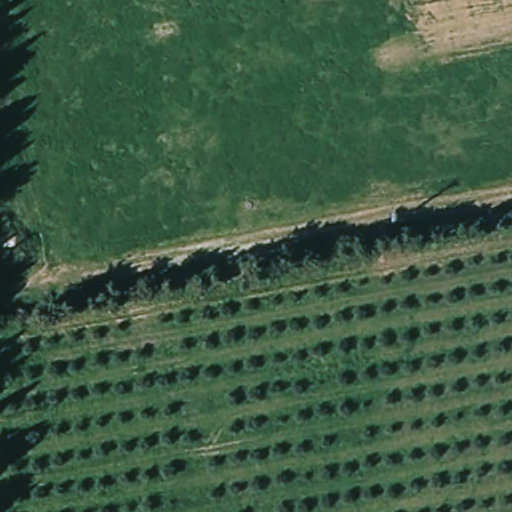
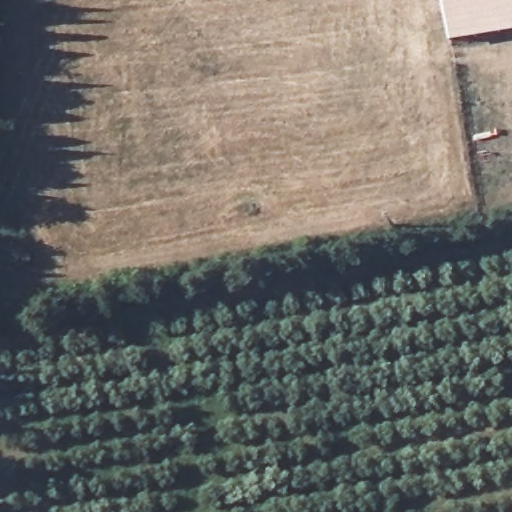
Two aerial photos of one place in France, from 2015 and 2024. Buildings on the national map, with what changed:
new [(444,0),(512,0),(512,34),(451,44),(444,0)]

